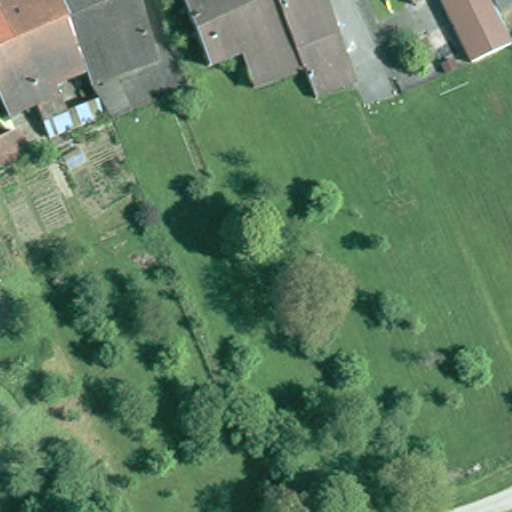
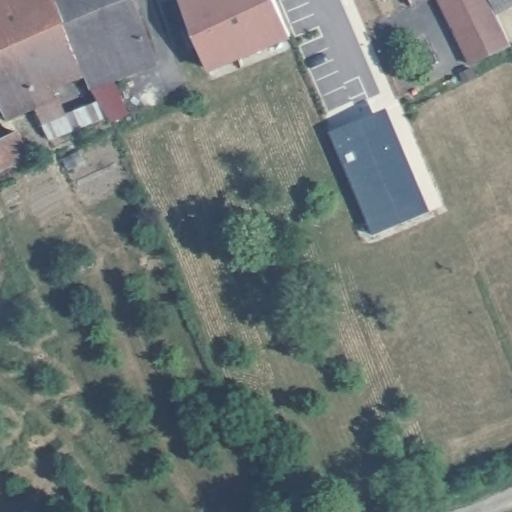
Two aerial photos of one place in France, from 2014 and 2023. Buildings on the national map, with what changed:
unchanged [(90,75),(56,92),(38,100),(42,107),(11,121),(0,96),(0,0),(59,0),(90,75)]
unchanged [(67,115),(101,101),(94,82),(90,75),(59,0),(137,0),(161,54),(112,75),(125,105),(128,111),(109,119),(109,117),(55,140),(42,107),(38,100),(56,92),(67,115)]
unchanged [(181,0),(271,0),(289,38),(208,69),(181,0)]
demolished [(339,53),(344,52),(353,74),(312,91),(301,67),(271,0),(323,0),(334,29),(329,31),(339,53)]
unchanged [(414,5),(413,0),(425,0),(414,5)]
unchanged [(443,0),(489,0),(493,8),(494,12),(498,17),(511,42),(481,57),(471,62),(458,34),(453,22),(443,0)]
unchanged [(493,8),(489,0),(508,0),(493,8)]
new [(329,131),(387,106),(430,209),(371,234),(329,131)]
unchanged [(36,150),(0,167),(0,143),(28,130),(36,150)]
unchanged [(310,420),(300,424),(296,412),(306,409),(310,420)]

